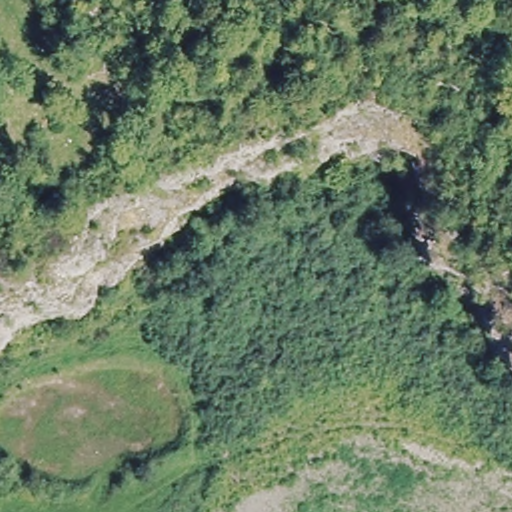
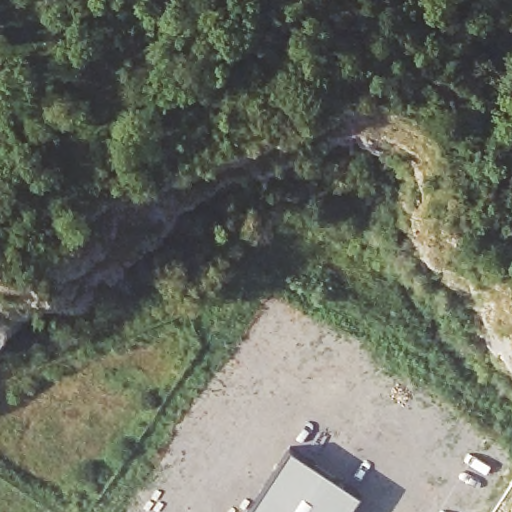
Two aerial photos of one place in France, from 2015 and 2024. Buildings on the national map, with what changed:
new [(291,449),(361,495),(349,512),(248,512),(291,449)]

